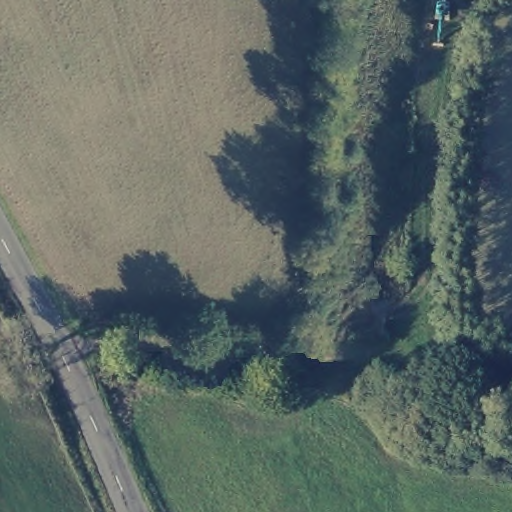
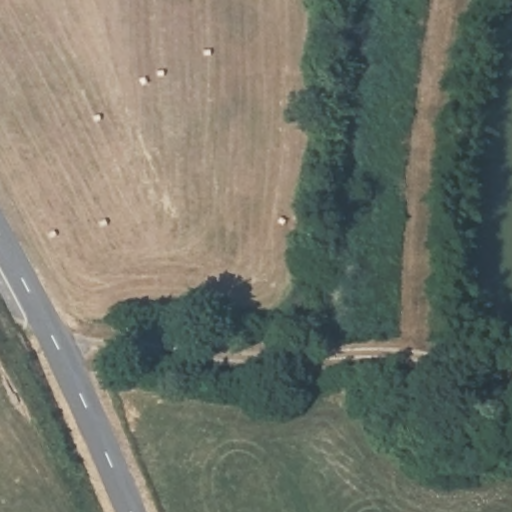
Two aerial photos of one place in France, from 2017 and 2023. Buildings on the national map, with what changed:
[]

